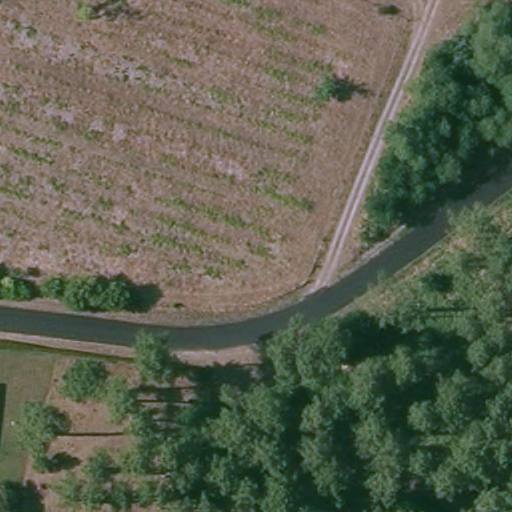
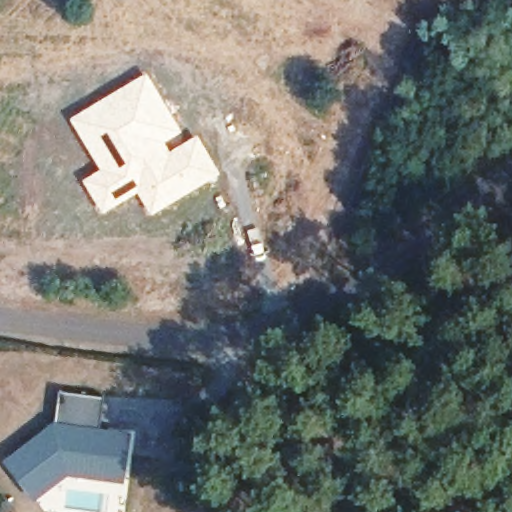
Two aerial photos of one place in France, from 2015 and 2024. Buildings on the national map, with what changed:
new [(221,174),(152,215),(139,193),(105,214),(84,181),(101,170),(70,119),(148,73),(182,132),(165,142),(171,152),(198,135),(221,174)]
new [(105,399),(102,426),(133,431),(126,483),(68,475),(36,500),(5,459),(55,421),(58,421),(62,392),(105,399)]

